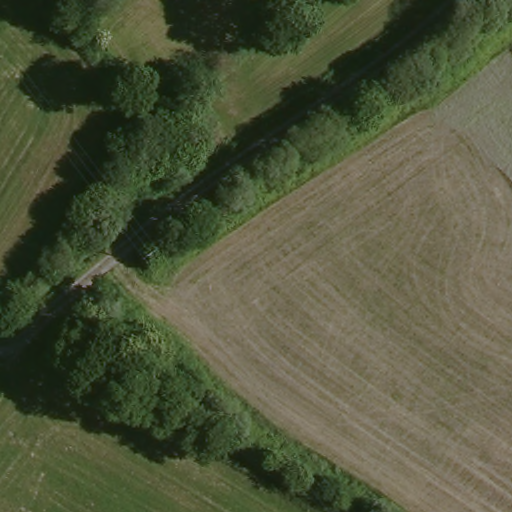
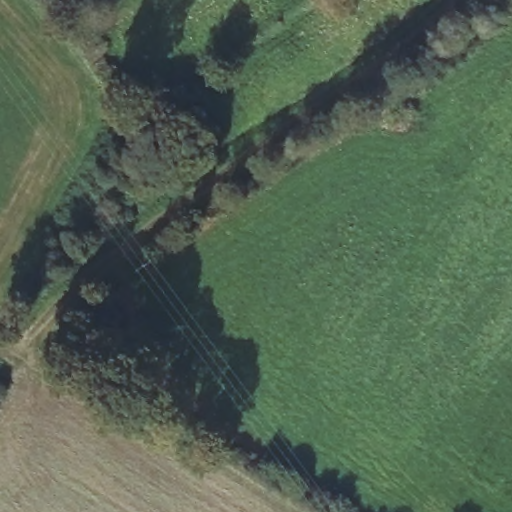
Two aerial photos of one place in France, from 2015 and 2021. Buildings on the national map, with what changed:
unchanged [(164,0),(174,0),(169,5),(164,0)]

